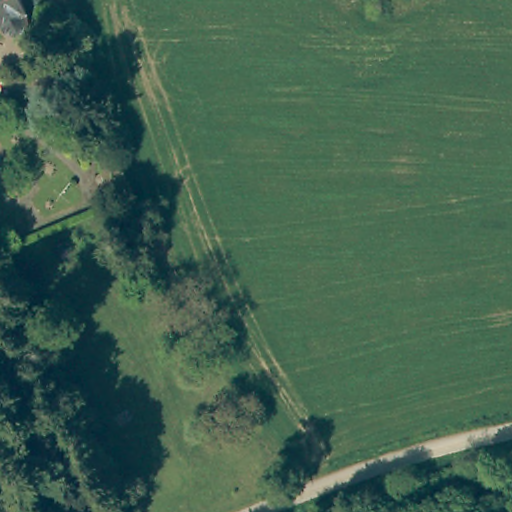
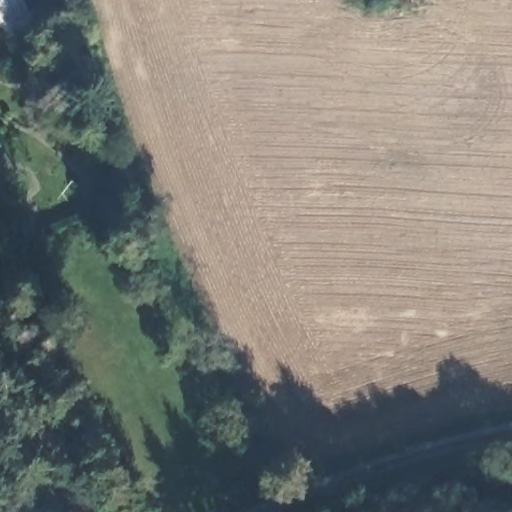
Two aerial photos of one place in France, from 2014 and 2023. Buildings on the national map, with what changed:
unchanged [(33,32),(21,36),(7,20),(0,22),(0,0),(21,0),(33,32)]

